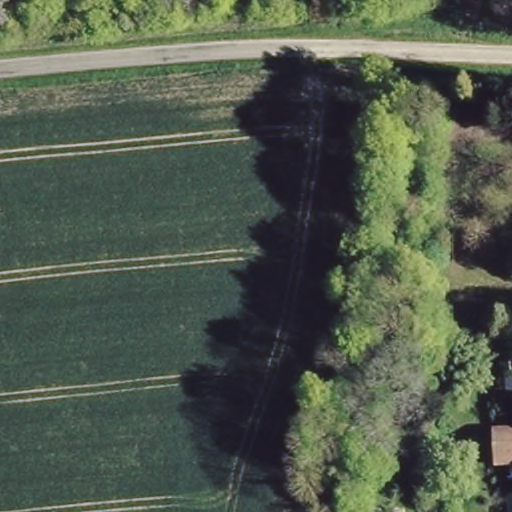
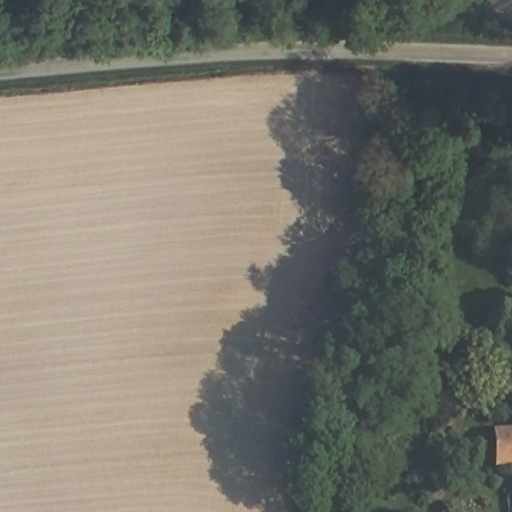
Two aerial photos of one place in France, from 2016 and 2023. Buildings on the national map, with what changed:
unchanged [(497,468),(494,427),(512,427),(512,467),(497,468)]
unchanged [(502,499),(512,498),(512,512),(502,512),(502,499)]

